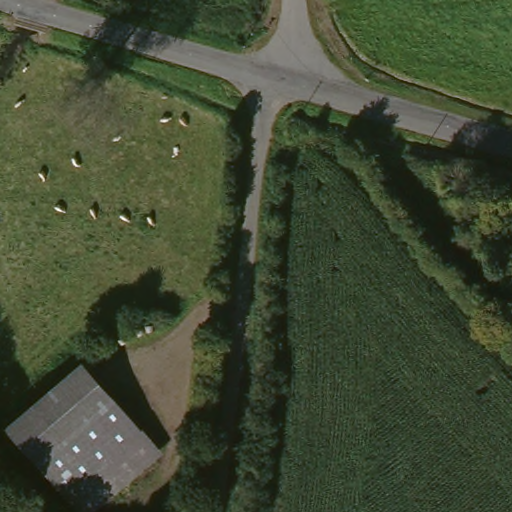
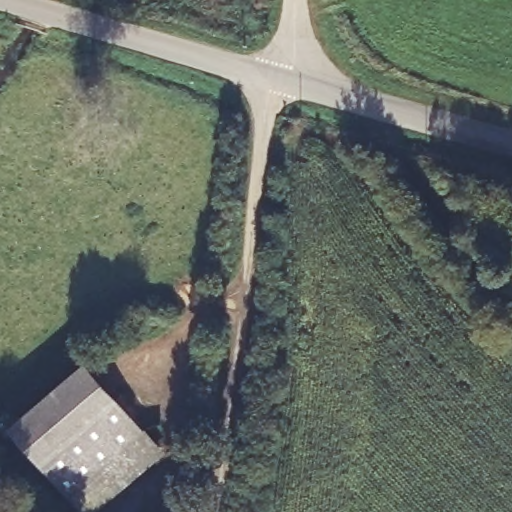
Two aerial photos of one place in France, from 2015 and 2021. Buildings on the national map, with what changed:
unchanged [(460,210),(442,222),(437,226),(408,187),(413,183),(420,178),(441,181),(460,210)]
unchanged [(159,457),(102,512),(70,512),(1,433),(77,364),(159,457)]

